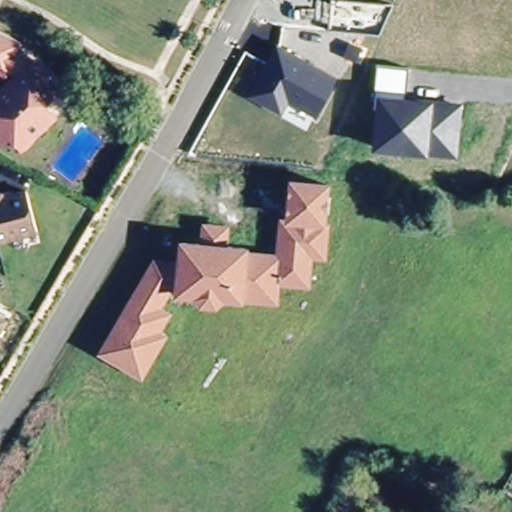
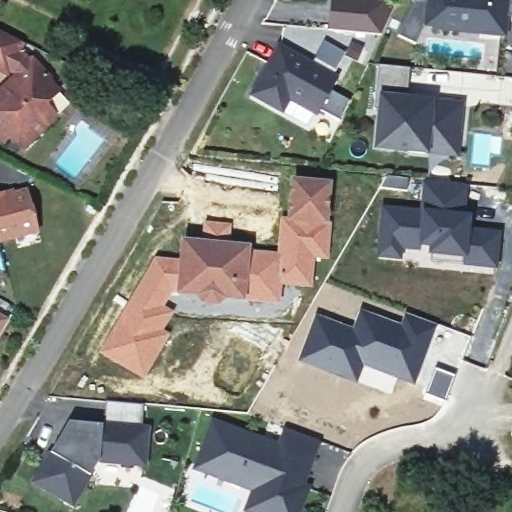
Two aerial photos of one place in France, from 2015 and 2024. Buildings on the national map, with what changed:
unchanged [(393,2),(379,34),(329,29),(331,0),(359,0),(393,2)]
new [(443,26),(443,23),(428,21),(419,40),(401,32),(417,0),(512,0),(512,9),(511,9),(511,17),(509,32),(484,30),(443,26)]
unchanged [(30,57),(73,105),(27,147),(15,135),(8,141),(0,133),(0,95),(21,75),(17,72),(13,69),(11,73),(0,67),(0,27),(28,42),(23,53),(30,57)]
unchanged [(338,76),(317,116),(289,101),(282,114),(248,95),(277,43),(338,76)]
unchanged [(405,96),(433,98),(460,101),(457,157),(427,153),(373,148),(376,94),(376,64),(408,67),(405,96)]
new [(380,204),(419,208),(422,179),(469,184),(465,212),(472,213),(470,226),(464,258),(426,254),(404,247),(401,259),(375,256),(380,204)]
unchanged [(248,247),(248,252),(282,256),(285,220),(291,221),(296,181),(331,185),(326,225),(329,225),(326,255),(313,254),(310,284),(280,280),(278,300),(245,296),(245,297),(227,295),(218,301),(204,300),(197,291),(179,290),(180,287),(171,286),(149,321),(155,325),(130,365),(102,348),(158,258),(183,261),(186,240),(208,243),(209,237),(210,224),(228,226),(227,239),(226,245),(248,247)]
unchanged [(6,191),(30,186),(39,226),(0,236),(0,188),(5,187),(6,191)]
new [(464,258),(470,226),(502,229),(497,268),(463,265),(464,258)]
new [(315,312),(351,326),(359,309),(399,323),(405,311),(438,323),(428,351),(414,385),(396,378),(390,393),(296,360),(315,312)]
unchanged [(10,320),(0,337),(0,314),(10,320)]
new [(438,323),(470,336),(458,366),(428,351),(438,323)]
new [(434,366),(455,374),(444,401),(424,393),(434,366)]
unchanged [(65,413),(98,417),(101,394),(139,398),(137,422),(143,422),(138,459),(92,453),(66,496),(28,473),(65,413)]
new [(273,443),(280,426),(313,439),(299,474),(295,472),(291,481),(301,485),(291,512),(264,512),(270,496),(189,463),(208,417),(273,443)]

